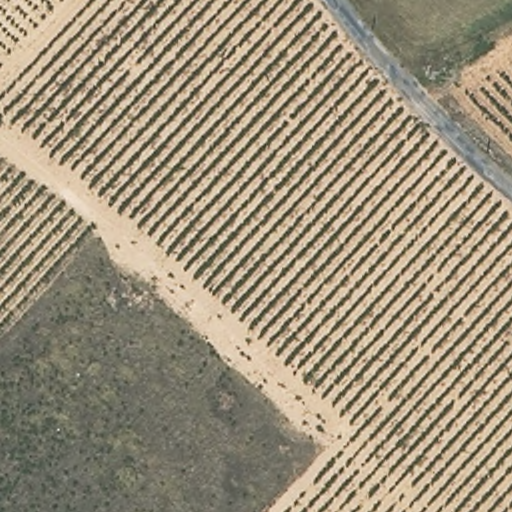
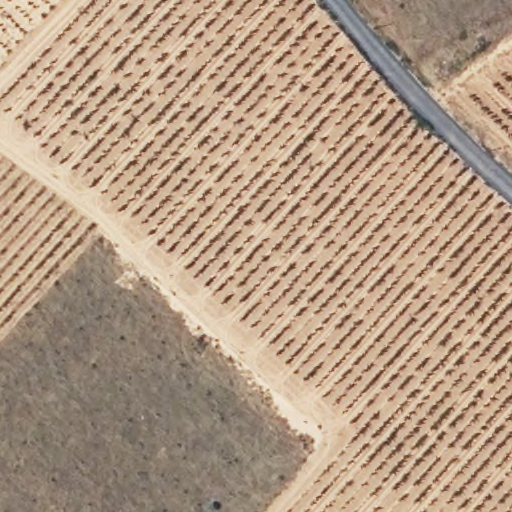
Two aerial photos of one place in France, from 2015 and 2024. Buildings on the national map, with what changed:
[]

